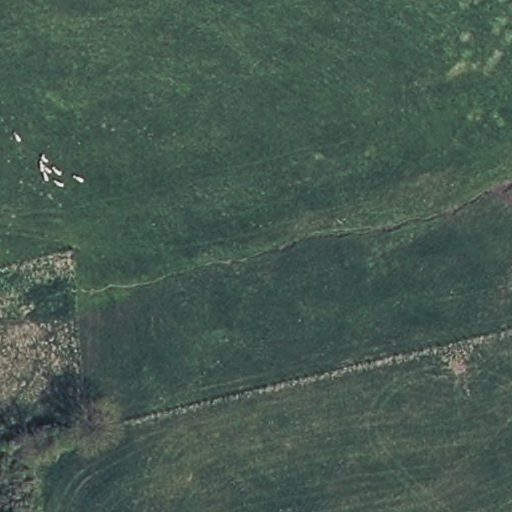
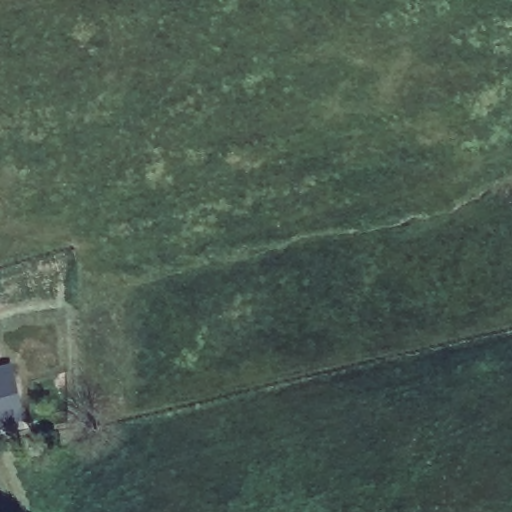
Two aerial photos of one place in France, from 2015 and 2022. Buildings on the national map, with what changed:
new [(10,363),(23,422),(0,427),(0,366),(10,363)]

